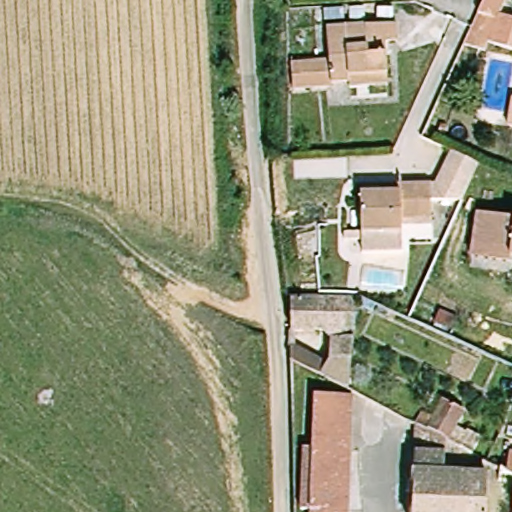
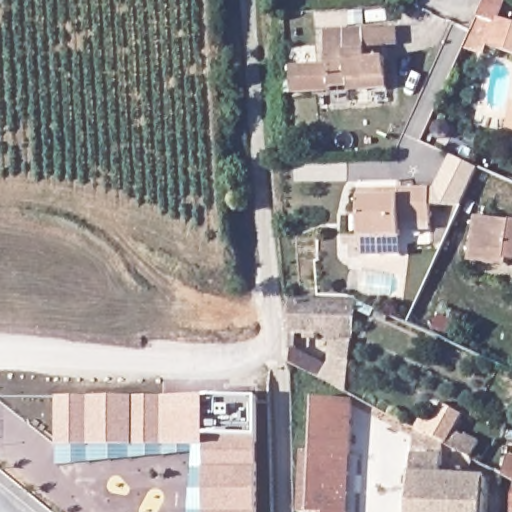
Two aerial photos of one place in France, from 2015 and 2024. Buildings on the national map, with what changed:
unchanged [(483,0),(502,0),(497,16),(512,21),(512,53),(487,45),(484,54),(461,48),(469,31),(483,0)]
unchanged [(356,96),(356,90),(290,95),(289,66),(327,62),(326,33),(366,30),(369,42),(379,41),(380,56),(389,56),(390,75),(391,92),(356,96)]
unchanged [(508,129),(512,112),(512,130),(508,129)]
unchanged [(367,258),(366,238),(362,199),(382,197),(381,189),(437,183),(453,150),(479,161),(462,197),(432,201),(434,218),(404,222),(405,234),(407,254),(367,258)]
unchanged [(468,269),(476,213),(512,217),(512,275),(468,269)]
unchanged [(332,355),(334,332),(319,328),(292,333),(292,300),(356,298),(354,345),(349,389),(324,377),(291,362),(290,347),(329,363),(332,355)]
new [(57,466),(57,446),(57,396),(89,397),(134,397),(162,397),(205,397),(257,397),(257,436),(257,468),(257,512),(188,512),(194,455),(57,466)]
unchanged [(302,512),(304,449),(313,450),(315,396),(352,397),(348,512),(302,512)]
unchanged [(424,415),(435,420),(445,402),(464,413),(457,429),(466,435),(460,447),(419,425),(424,415)]
unchanged [(460,447),(459,465),(447,465),(446,475),(416,475),(419,425),(460,447)]
unchanged [(508,455),(512,455),(512,475),(507,472),(508,455)]
unchanged [(489,478),(487,512),(413,512),(416,475),(446,475),(489,478)]

